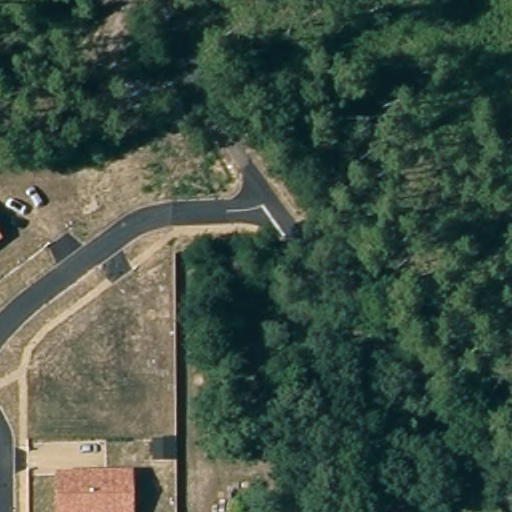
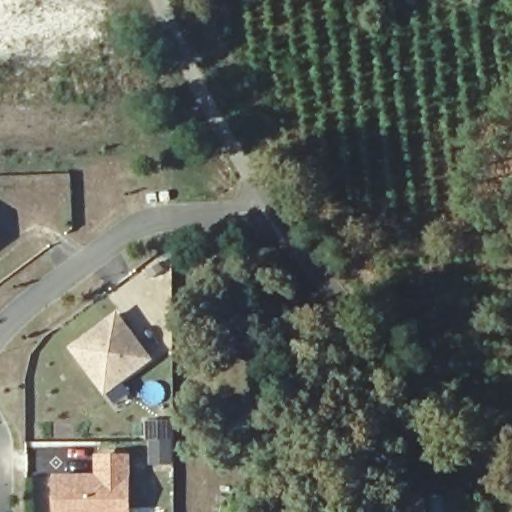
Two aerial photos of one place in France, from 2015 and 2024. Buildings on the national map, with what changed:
new [(154,360),(106,397),(68,348),(117,310),(154,360)]
unchanged [(54,476),(131,475),(133,512),(55,512),(54,476)]
unchanged [(381,497),(421,492),(423,512),(383,512),(381,497)]

